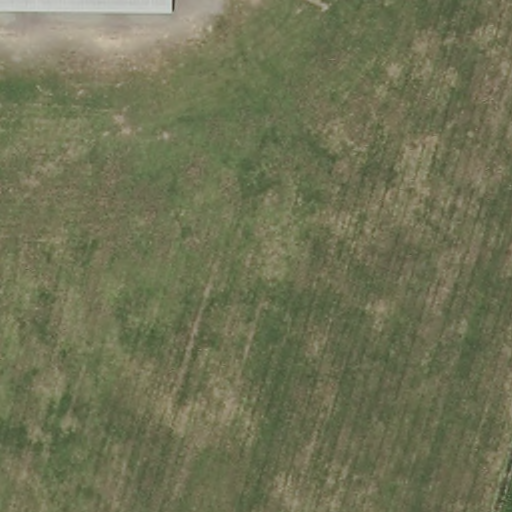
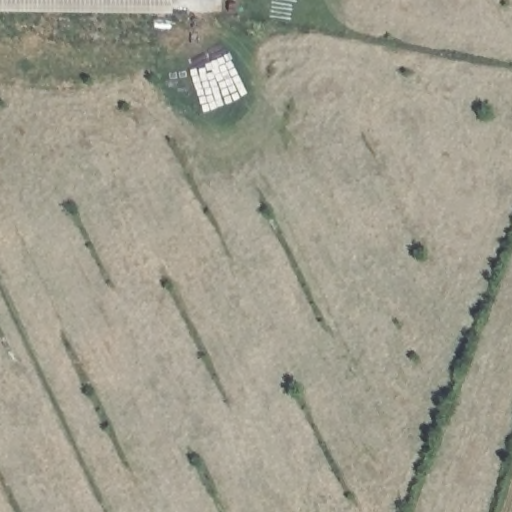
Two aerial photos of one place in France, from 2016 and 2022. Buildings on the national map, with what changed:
unchanged [(173,14),(0,12),(0,0),(173,0),(173,14)]

